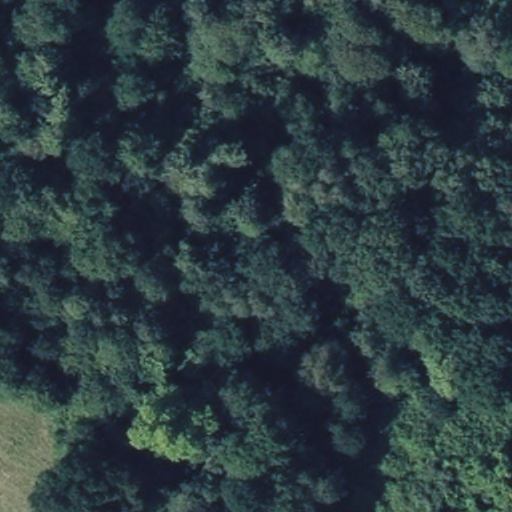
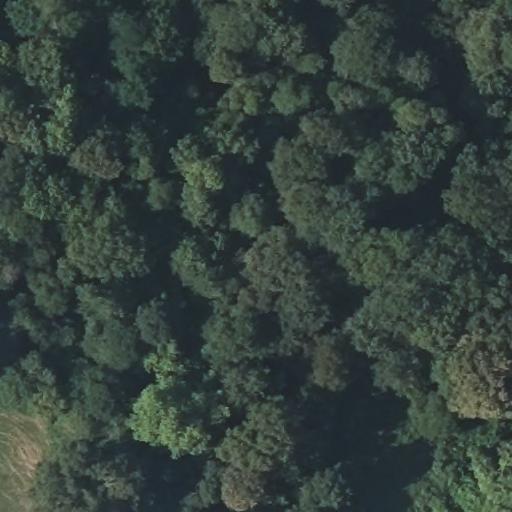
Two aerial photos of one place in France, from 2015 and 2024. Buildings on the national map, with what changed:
[]

